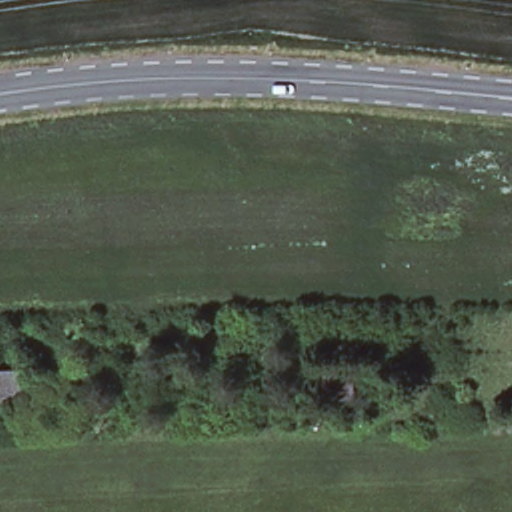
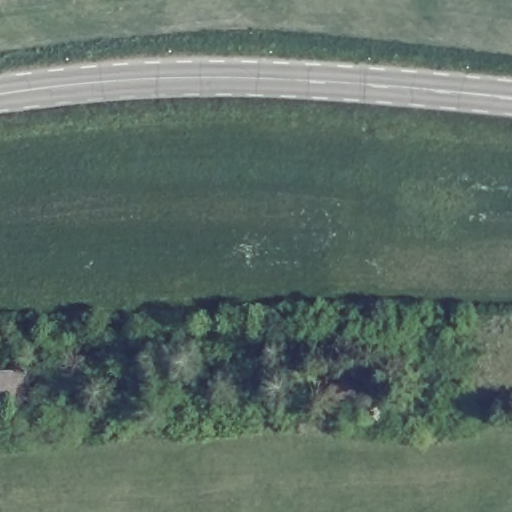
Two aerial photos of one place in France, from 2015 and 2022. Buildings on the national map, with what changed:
unchanged [(0,402),(0,366),(28,366),(27,402),(0,402)]
unchanged [(317,398),(317,368),(357,371),(355,400),(317,398)]

